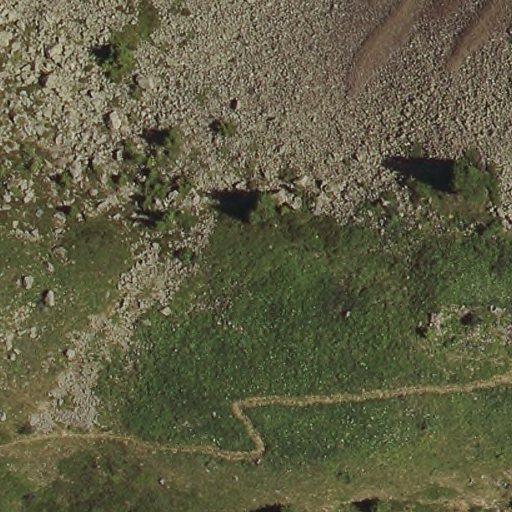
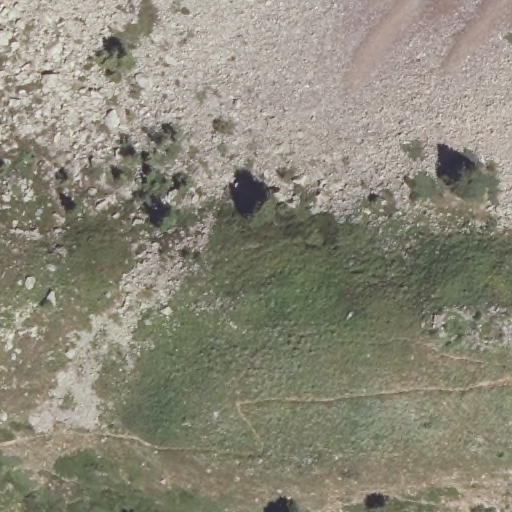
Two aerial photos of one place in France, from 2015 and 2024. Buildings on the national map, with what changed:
[]

